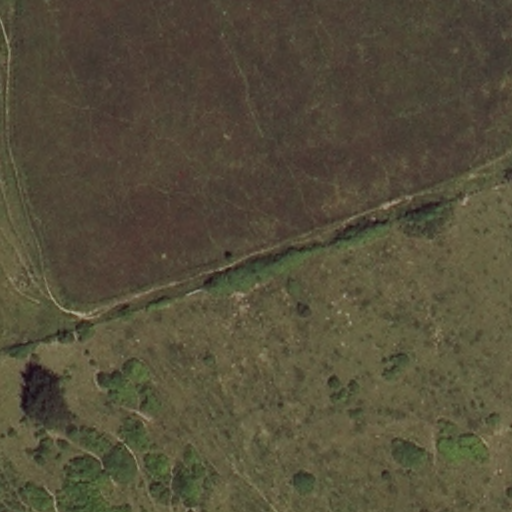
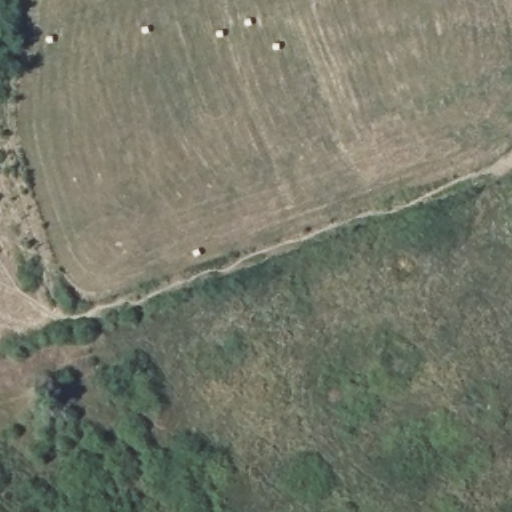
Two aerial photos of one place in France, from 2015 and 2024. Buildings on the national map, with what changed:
[]

